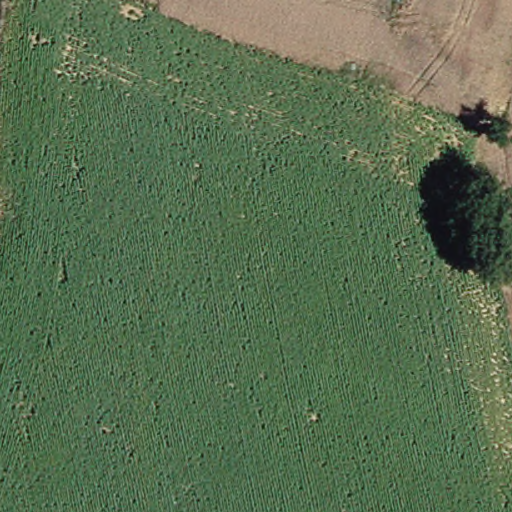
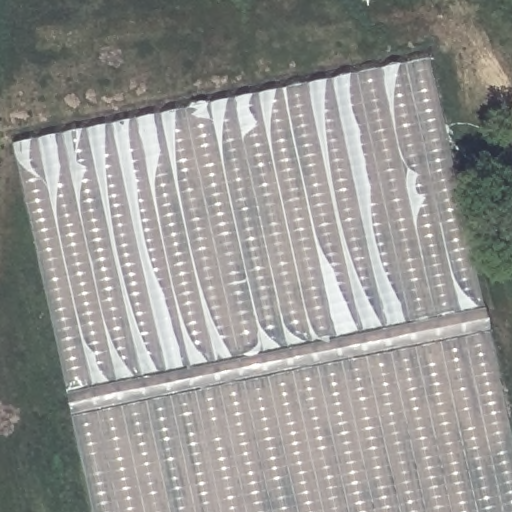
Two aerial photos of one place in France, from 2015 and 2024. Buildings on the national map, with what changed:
new [(13,144),(429,58),(512,440),(512,512),(94,512),(13,144)]

